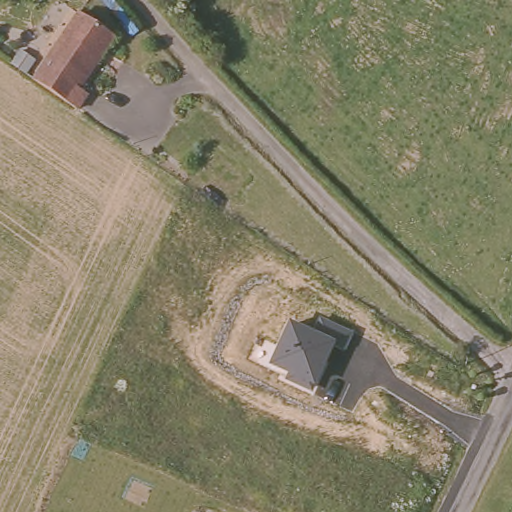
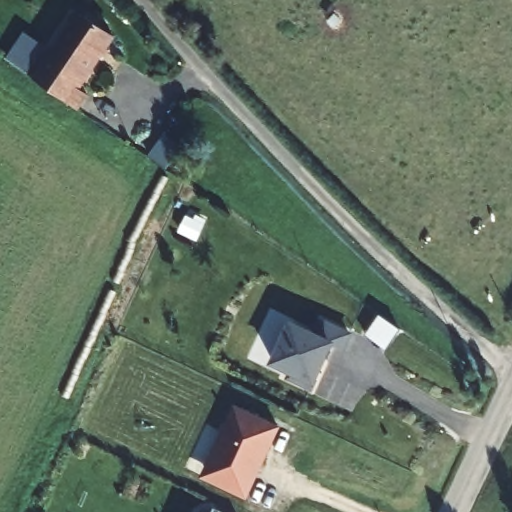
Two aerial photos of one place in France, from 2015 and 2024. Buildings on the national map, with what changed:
unchanged [(36,80),(79,18),(120,46),(87,96),(95,101),(86,114),(36,80)]
unchanged [(315,332),(322,317),(355,333),(345,353),(335,348),(317,389),(312,387),(309,394),(282,380),(285,373),(268,365),(288,322),(315,332)]
new [(282,426),(247,500),(200,478),(235,405),(282,426)]

